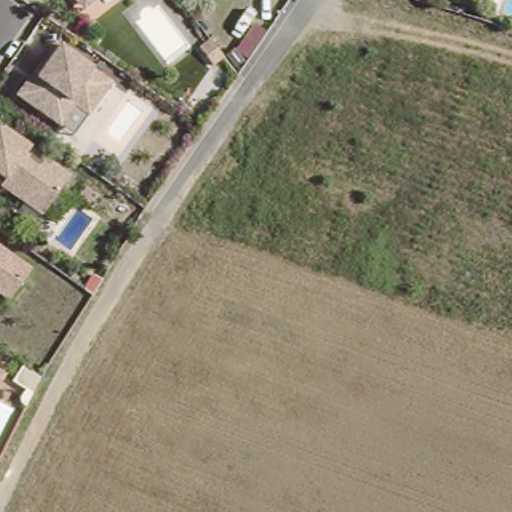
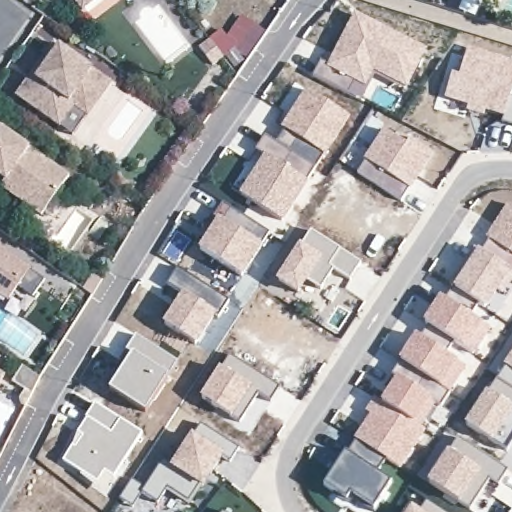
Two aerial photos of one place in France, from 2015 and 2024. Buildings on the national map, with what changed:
unchanged [(84,0),(76,6),(72,0),(84,0)]
new [(326,64),(354,12),(426,49),(406,89),(374,74),(366,89),(360,100),(311,74),(319,60),(326,64)]
new [(248,59),(234,50),(213,66),(200,49),(223,31),(227,36),(231,33),(241,16),(268,31),(248,59)]
unchanged [(50,119),(12,91),(23,76),(36,57),(49,39),(106,79),(83,112),(70,103),(55,123),(50,119)]
new [(446,70),(457,74),(463,57),(467,47),(512,60),(512,88),(503,118),(485,113),(452,102),(438,96),(446,70)]
new [(290,110),(303,91),(305,88),(350,117),(323,156),(283,130),(280,129),(290,110)]
unchanged [(36,211),(0,185),(0,127),(63,173),(36,211)]
new [(383,129),(407,143),(408,140),(432,155),(400,202),(355,172),(383,129)]
new [(265,136),(275,143),(283,130),(323,156),(308,182),(262,154),(256,150),(265,136)]
new [(262,154),(308,182),(281,222),(238,193),(262,154)]
new [(215,214),(221,203),(270,234),(264,244),(245,274),(241,278),(197,249),(218,216),(215,214)]
new [(508,203),(512,206),(512,256),(486,239),(508,203)]
new [(311,230),(361,264),(349,283),(334,272),(321,293),(306,283),(298,295),(275,280),(311,230)]
new [(486,239),(512,256),(512,276),(486,310),(452,288),(486,239)]
unchanged [(0,248),(26,267),(18,279),(5,297),(0,293),(0,248)]
new [(165,284),(173,269),(228,302),(220,314),(210,329),(198,347),(161,323),(181,293),(165,284)]
new [(440,295),(491,329),(473,358),(422,322),(440,295)]
new [(393,373),(400,363),(397,361),(415,333),(469,368),(448,395),(439,405),(422,428),(378,404),(396,375),(393,373)]
new [(129,354),(123,351),(133,334),(176,361),(144,412),(108,389),(129,354)]
new [(512,350),(512,371),(503,365),(512,350)]
new [(228,354),(278,387),(269,403),(258,396),(238,424),(198,397),(221,366),(228,354)]
new [(503,365),(512,371),(512,443),(507,452),(463,423),(503,365)]
new [(346,499),(323,486),(345,452),(353,439),(368,414),(365,412),(371,401),(378,404),(422,428),(426,431),(399,469),(386,461),(379,473),(391,483),(374,509),(351,494),(346,499)]
new [(105,473),(98,483),(64,460),(73,446),(78,432),(87,419),(86,418),(95,404),(143,434),(114,479),(105,473)]
new [(199,424),(238,449),(231,461),(226,456),(201,489),(167,468),(193,433),(199,424)]
new [(449,448),(491,479),(469,509),(426,482),(449,448)]
new [(130,480),(143,488),(160,464),(167,468),(201,489),(188,503),(166,489),(157,503),(140,492),(131,506),(119,498),(130,480)]
new [(411,505),(420,511),(427,501),(443,512),(406,512),(411,505)]

